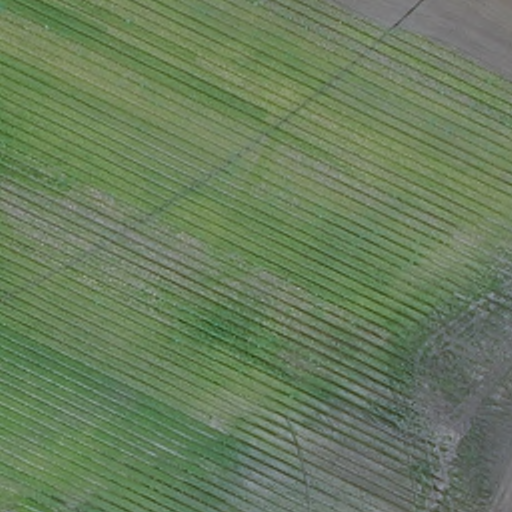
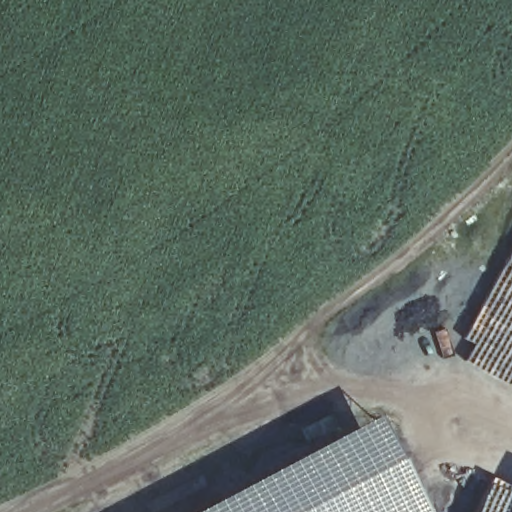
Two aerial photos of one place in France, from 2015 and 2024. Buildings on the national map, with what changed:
new [(371,417),(421,512),(192,512),(371,417)]

